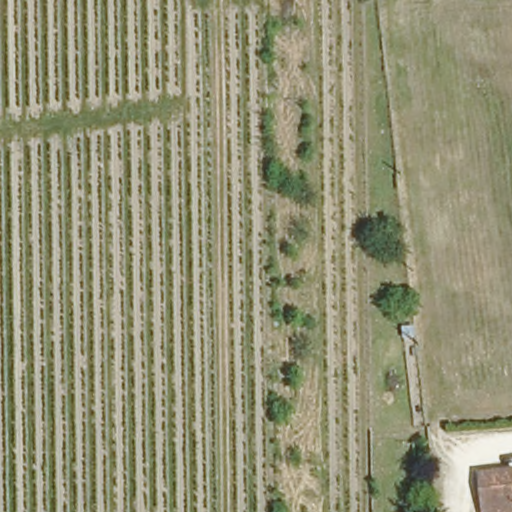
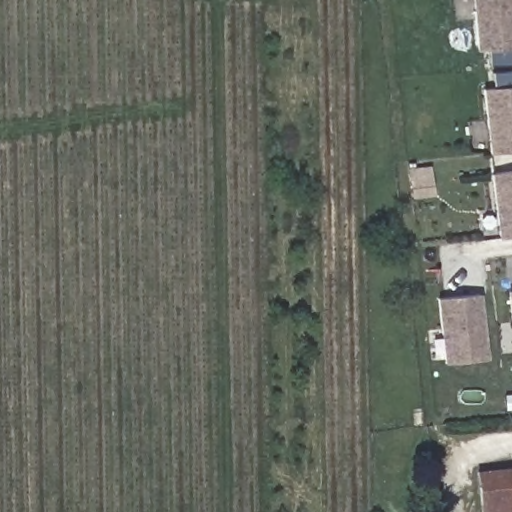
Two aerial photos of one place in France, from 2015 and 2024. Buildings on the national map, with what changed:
new [(473,0),(512,0),(512,48),(476,51),(473,0)]
new [(489,154),(483,90),(512,86),(512,152),(489,154)]
new [(498,239),(490,174),(512,171),(512,237),(498,239)]
new [(508,291),(512,290),(512,328),(508,291)]
new [(487,357),(444,363),(436,298),(481,292),(487,357)]
unchanged [(478,472),(512,468),(512,512),(481,512),(478,472)]

